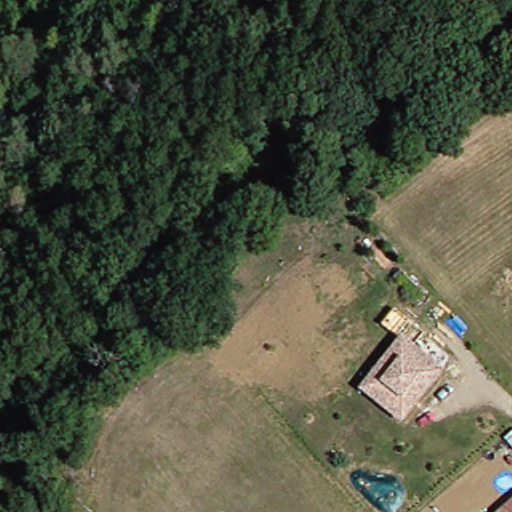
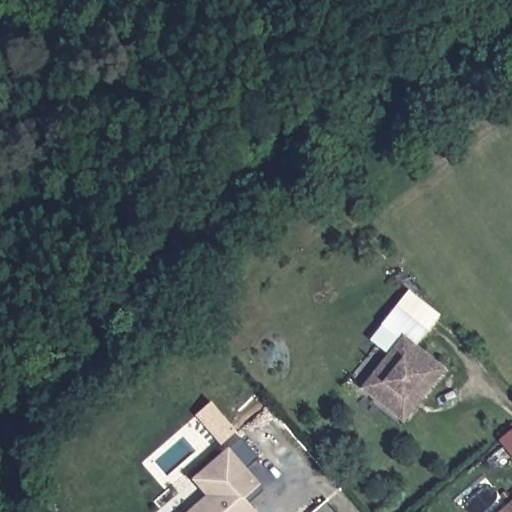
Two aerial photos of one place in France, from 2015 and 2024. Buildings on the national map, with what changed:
unchanged [(404,345),(440,375),(402,421),(366,391),(404,345)]
new [(212,465),(242,440),(260,461),(246,472),(259,487),(263,493),(248,506),(253,512),(190,512),(208,496),(194,480),(212,465)]
unchanged [(512,512),(498,512),(512,500),(512,512)]

